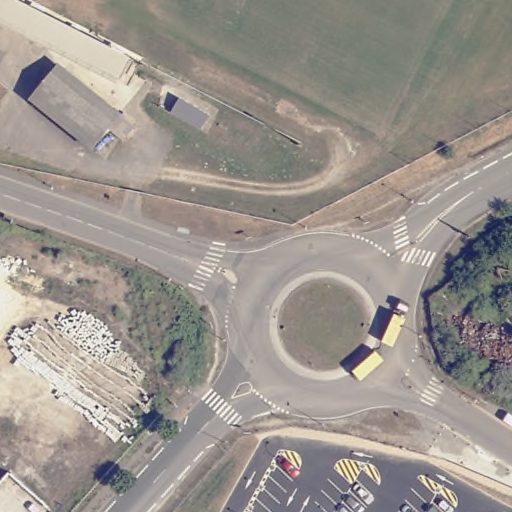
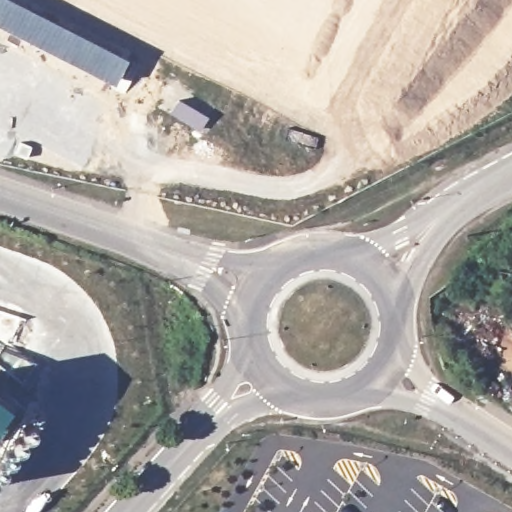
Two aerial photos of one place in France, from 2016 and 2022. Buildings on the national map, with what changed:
unchanged [(0,19),(0,0),(11,0),(136,65),(126,85),(0,19)]
unchanged [(106,127),(89,147),(29,97),(56,64),(131,126),(121,139),(106,127)]
unchanged [(0,90),(0,86),(2,88),(0,90)]
unchanged [(206,115),(198,128),(170,112),(177,100),(206,115)]
unchanged [(96,148),(108,134),(117,142),(106,157),(96,148)]
unchanged [(473,372),(496,386),(492,394),(478,386),(479,384),(469,377),(473,372)]

